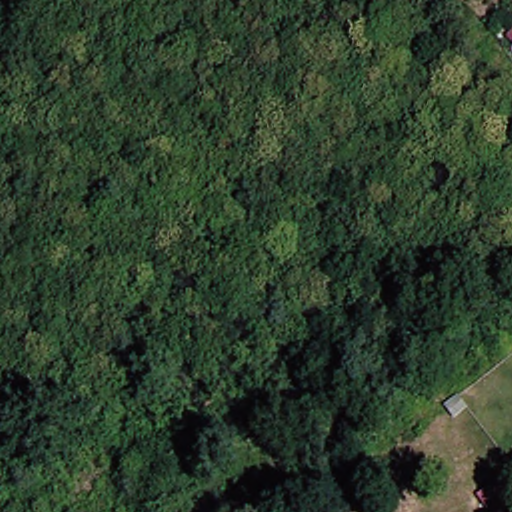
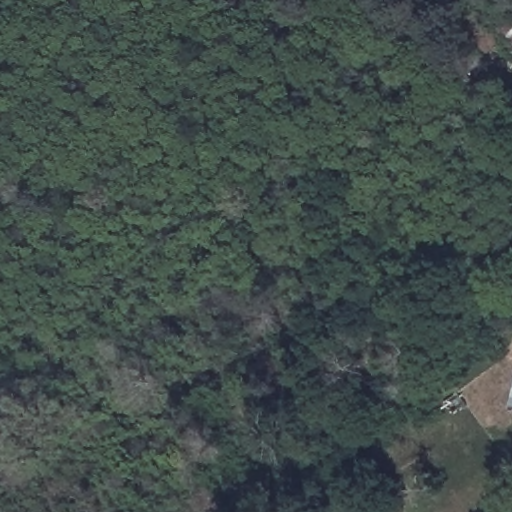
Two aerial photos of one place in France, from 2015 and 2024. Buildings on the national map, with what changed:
unchanged [(461,407),(447,418),(438,406),(440,405),(452,396),(461,407)]

